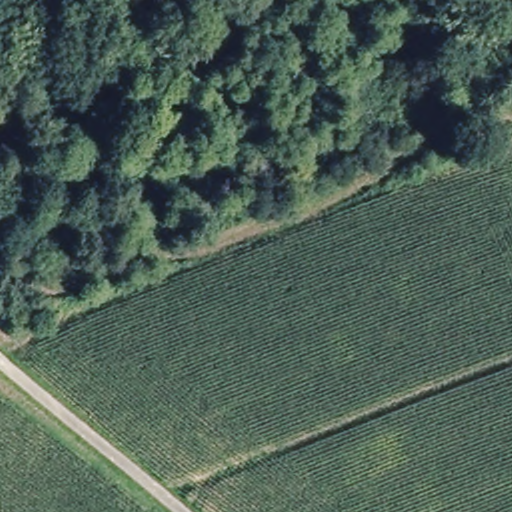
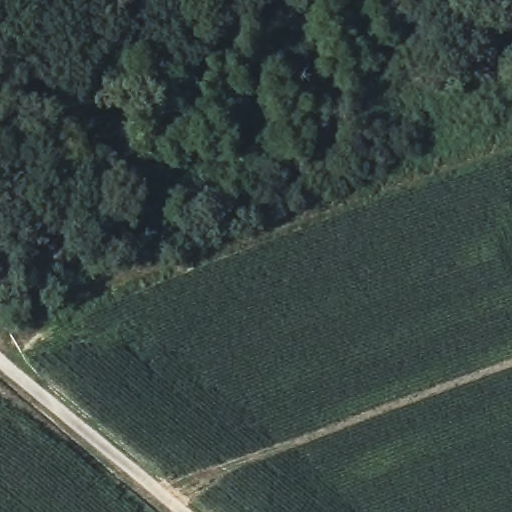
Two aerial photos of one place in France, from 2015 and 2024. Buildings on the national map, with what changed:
[]

